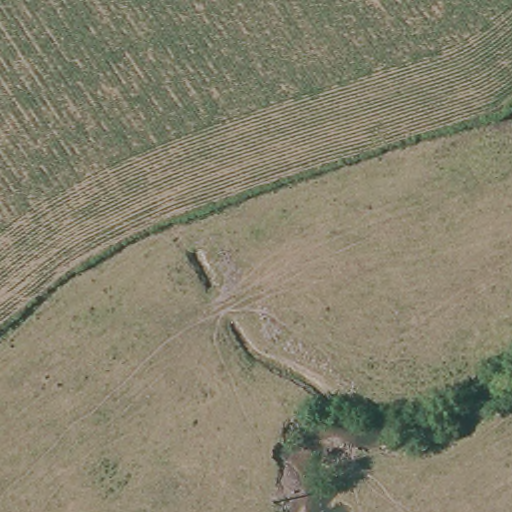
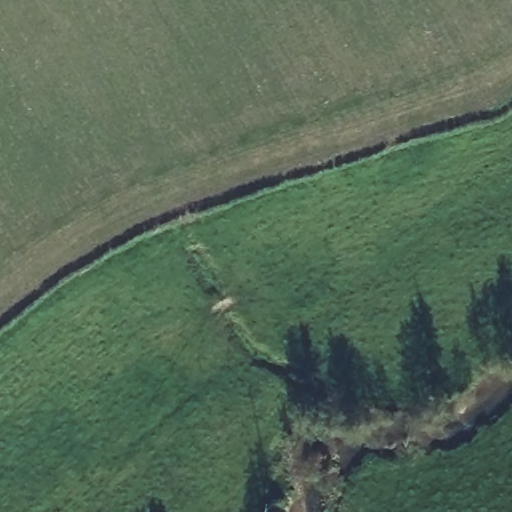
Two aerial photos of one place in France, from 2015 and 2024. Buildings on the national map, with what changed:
[]

